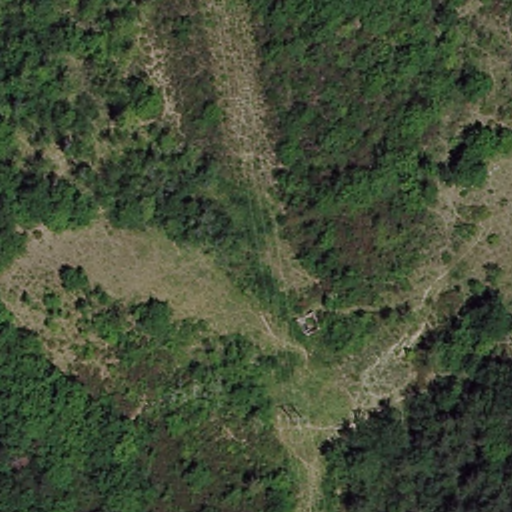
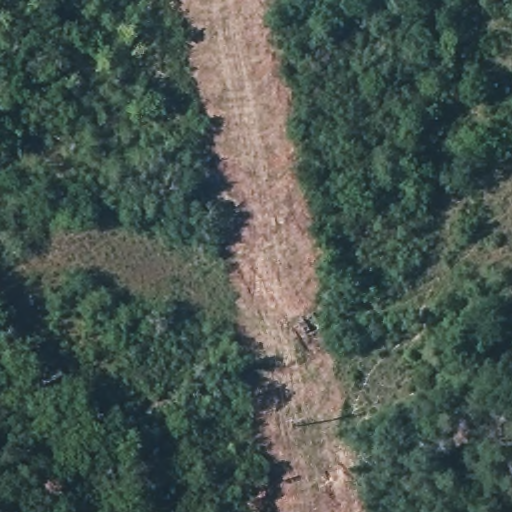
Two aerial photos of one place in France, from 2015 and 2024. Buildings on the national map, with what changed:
unchanged [(316,316),(325,331),(307,340),(298,324),(316,316)]

